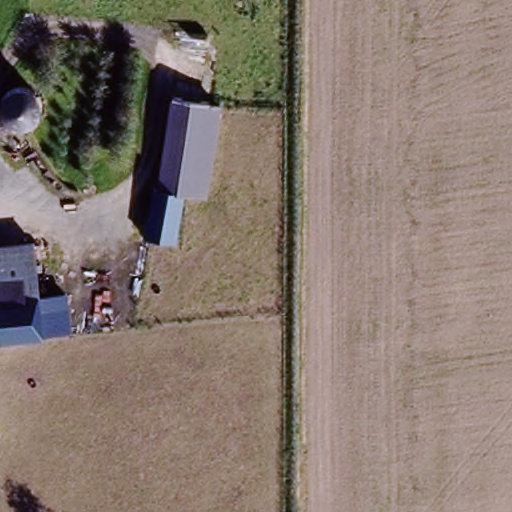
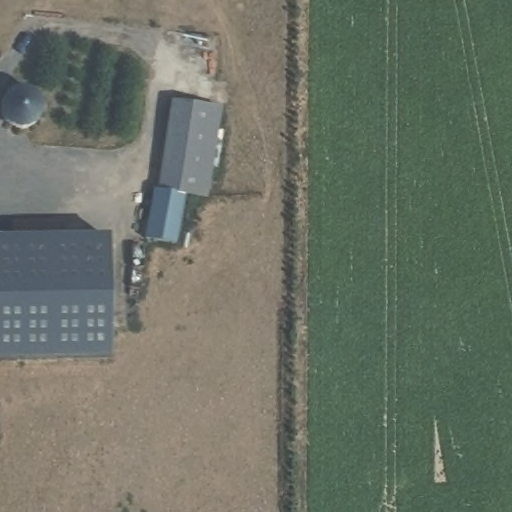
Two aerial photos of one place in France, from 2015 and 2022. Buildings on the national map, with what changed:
unchanged [(1,108),(3,103),(6,99),(10,95),(15,93),(21,93),(26,93),(31,96),(36,99),(39,103),(41,108),(42,114),(41,119),(39,124),(35,128),(31,131),(26,134),(21,134),(15,134),(10,131),(6,128),(3,124),(1,119),(0,113),(1,108)]
unchanged [(205,102),(216,104),(200,193),(178,189),(170,239),(140,234),(149,184),(153,185),(166,98),(205,102)]
new [(107,237),(108,360),(0,362),(0,239),(107,237)]
demolished [(38,294),(43,335),(0,340),(0,298),(38,294)]

